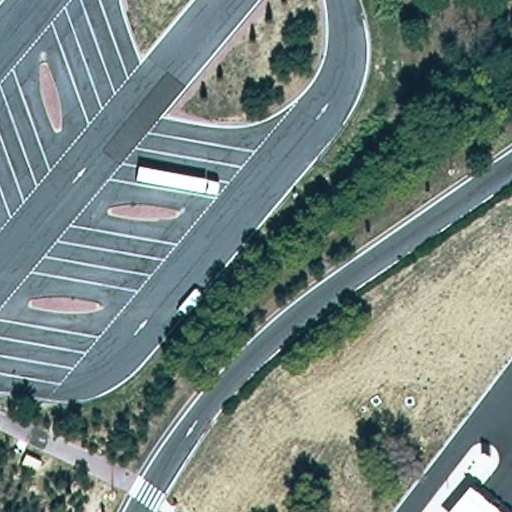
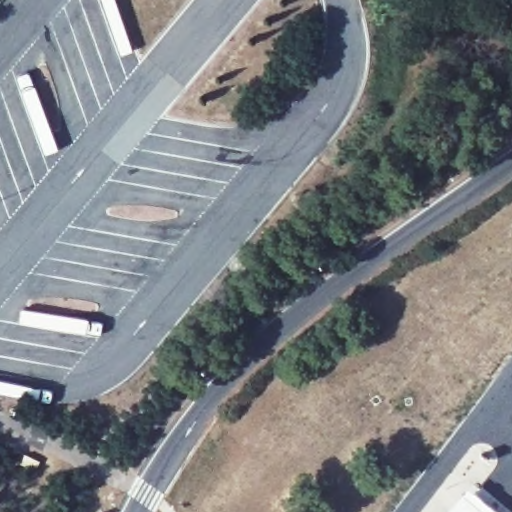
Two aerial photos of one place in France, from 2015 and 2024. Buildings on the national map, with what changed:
unchanged [(499,512),(448,512),(467,487),(499,512)]

